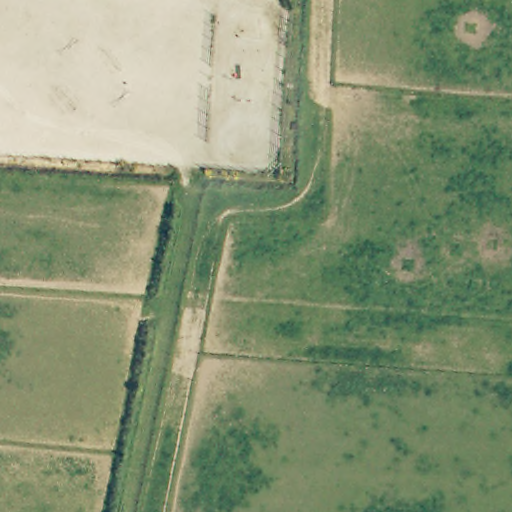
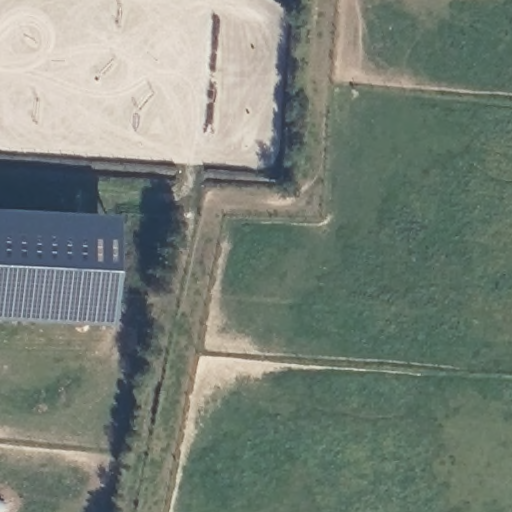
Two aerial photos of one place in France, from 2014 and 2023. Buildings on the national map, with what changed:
new [(112,220),(104,325),(0,318),(0,212),(112,220)]

